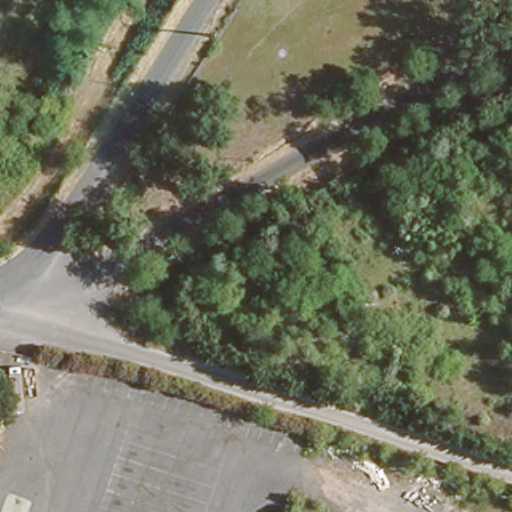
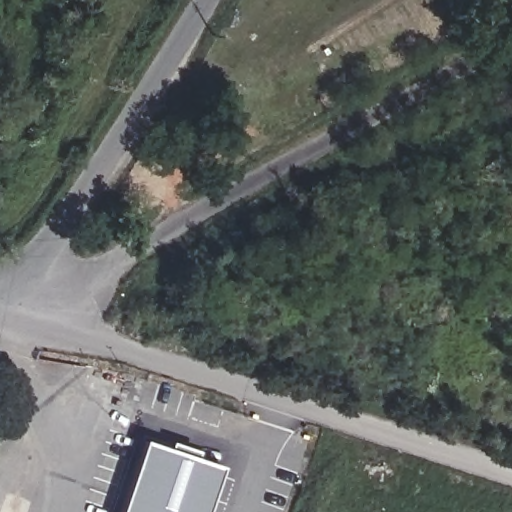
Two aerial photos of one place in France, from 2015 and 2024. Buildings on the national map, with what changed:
new [(203,512),(118,512),(142,440),(219,466),(203,512)]

